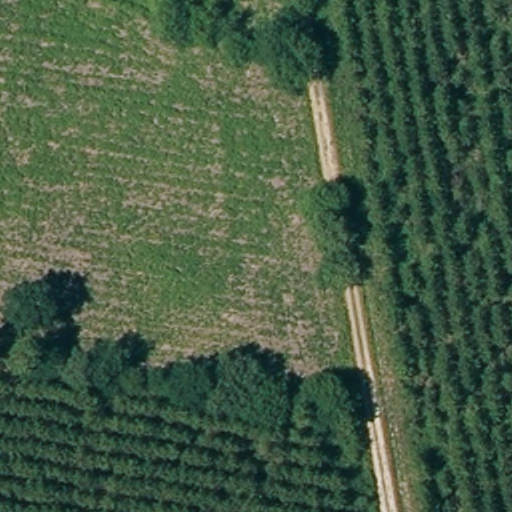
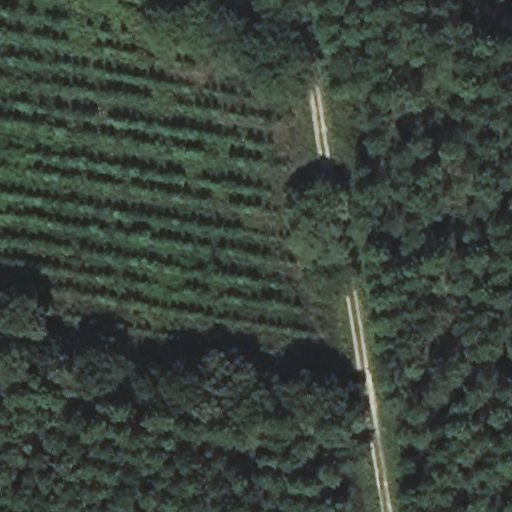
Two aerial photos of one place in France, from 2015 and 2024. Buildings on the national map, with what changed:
[]

